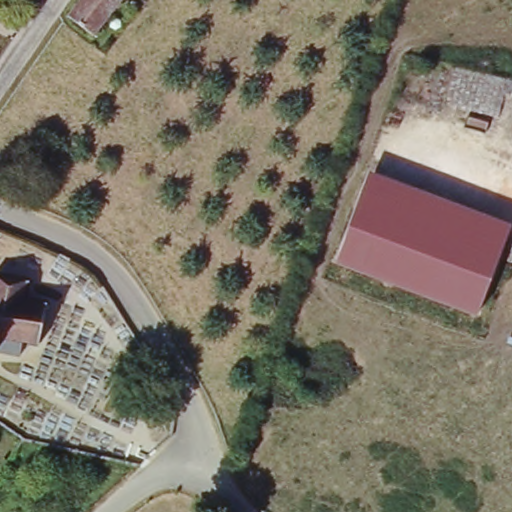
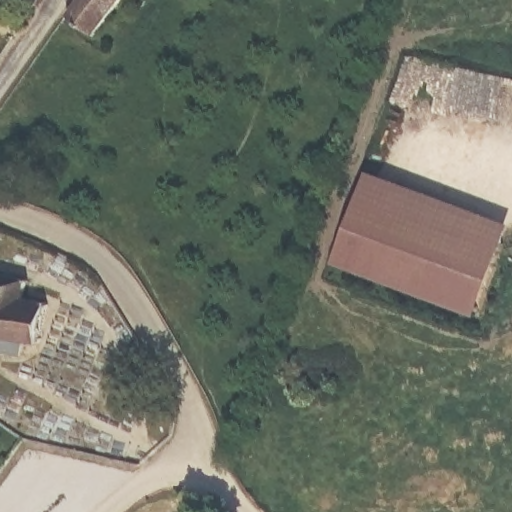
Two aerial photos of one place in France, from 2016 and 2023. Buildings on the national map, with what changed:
unchanged [(95,38),(69,17),(82,0),(124,0),(95,38)]
unchanged [(511,224),(477,318),(333,263),(368,173),(511,224)]
unchanged [(41,341),(24,338),(22,354),(0,349),(0,271),(30,277),(26,297),(48,301),(41,341)]

